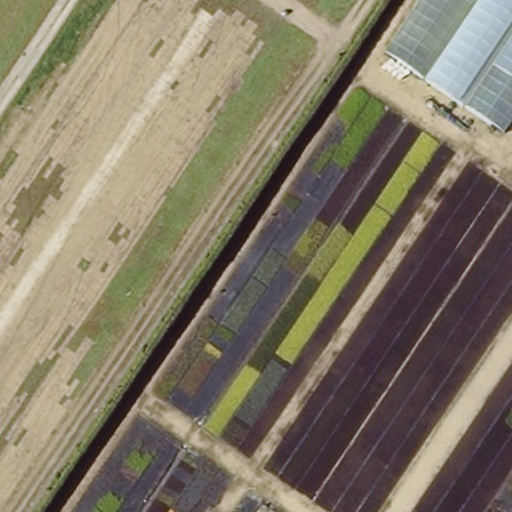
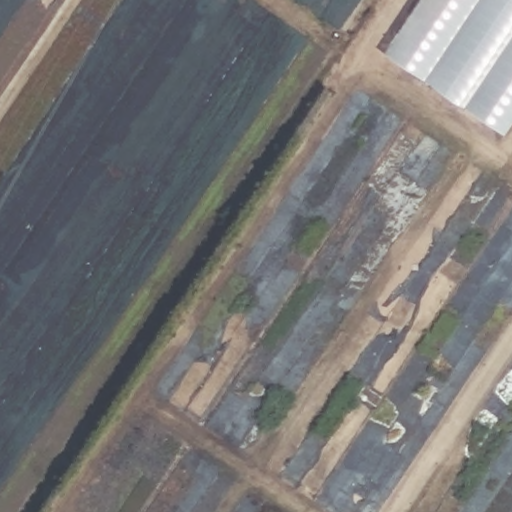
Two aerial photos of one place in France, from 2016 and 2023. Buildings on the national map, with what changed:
unchanged [(382,53),(419,0),(512,0),(512,116),(503,130),(382,53)]

